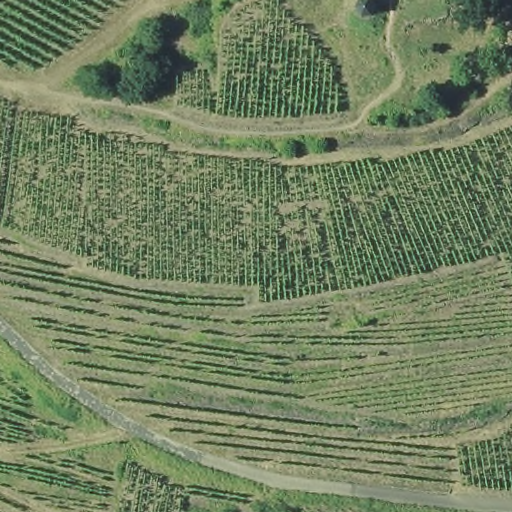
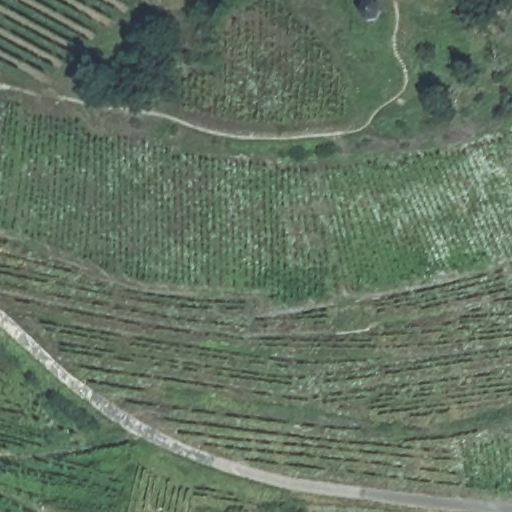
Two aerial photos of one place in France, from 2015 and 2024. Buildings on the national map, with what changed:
unchanged [(382,1),(385,5),(388,9),(387,12),(384,18),(375,20),(369,11),(372,2),(382,1)]

